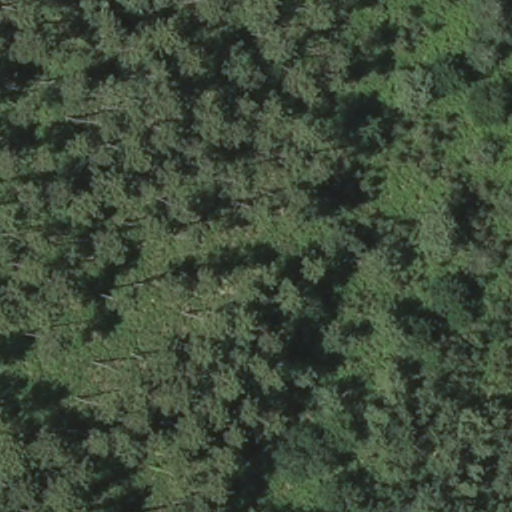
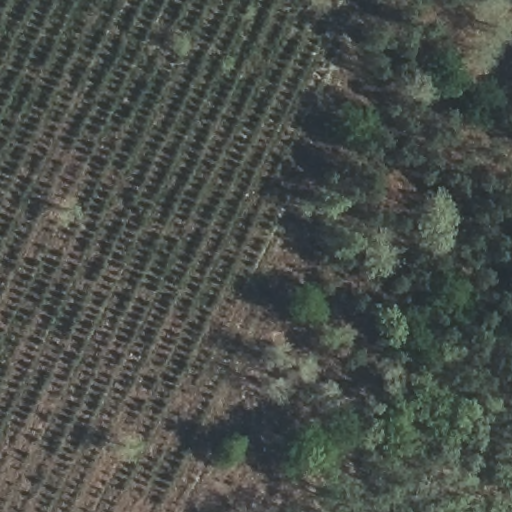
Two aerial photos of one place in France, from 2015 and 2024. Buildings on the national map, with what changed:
[]

